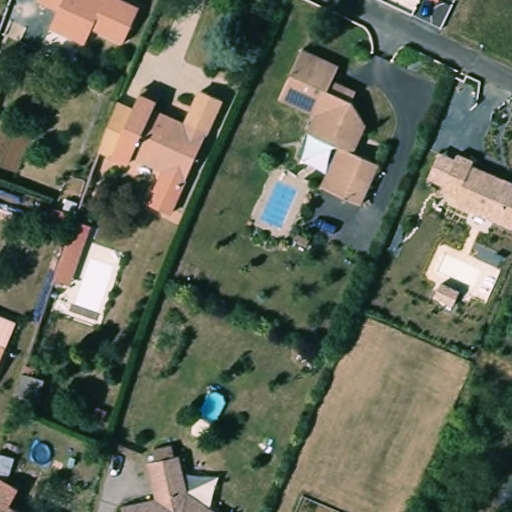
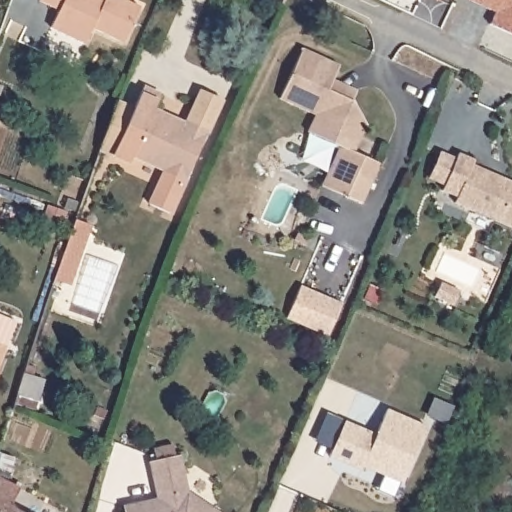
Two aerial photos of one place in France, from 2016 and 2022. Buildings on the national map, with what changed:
unchanged [(140,4),(125,37),(95,25),(87,41),(53,26),(60,9),(40,1),(40,0),(130,0),(140,4)]
new [(512,38),(488,27),(494,15),(463,0),(512,0),(512,38)]
unchanged [(335,161),(342,145),(310,131),(318,113),(280,98),(303,48),(340,65),(334,78),(358,89),(353,100),(368,124),(355,151),(381,162),(363,202),(347,196),(324,185),(335,161)]
unchanged [(136,107),(145,85),(163,91),(157,107),(190,122),(205,87),(225,97),(190,176),(175,210),(155,201),(169,167),(137,154),(135,161),(101,147),(104,140),(120,101),(136,107)]
unchanged [(473,167),(512,182),(512,227),(453,203),(455,199),(442,195),(457,155),(475,161),(473,167)]
unchanged [(92,224),(72,280),(56,274),(59,265),(75,217),(92,224)]
new [(330,335),(315,328),(288,317),(301,285),(330,297),(343,302),(330,335)]
unchanged [(18,321),(10,339),(7,338),(5,346),(0,344),(0,314),(18,321)]
unchanged [(5,346),(7,347),(0,365),(0,344),(5,346)]
unchanged [(36,367),(34,375),(46,378),(39,400),(17,393),(26,365),(36,367)]
new [(329,457),(345,422),(376,435),(386,409),(427,427),(403,486),(363,467),(361,471),(329,457)]
unchanged [(184,453),(194,488),(227,512),(127,512),(125,502),(160,493),(154,463),(184,453)]
unchanged [(20,481),(10,500),(32,512),(0,512),(0,471),(20,481)]

